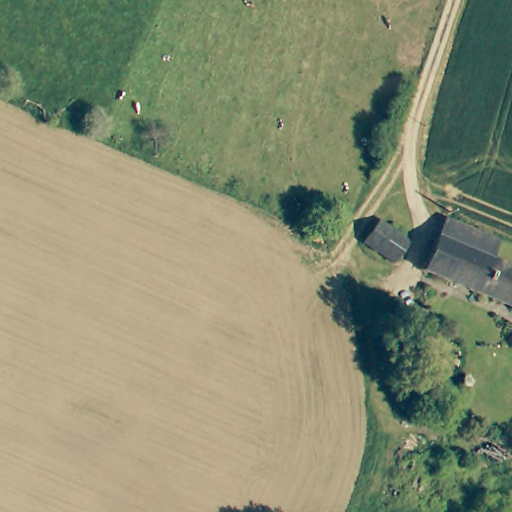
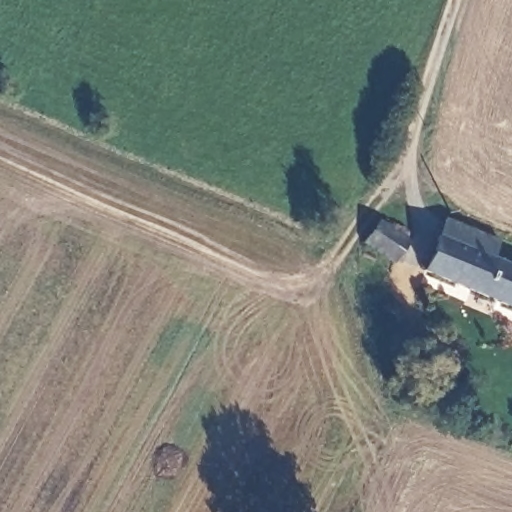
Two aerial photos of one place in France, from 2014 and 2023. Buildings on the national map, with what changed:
unchanged [(500,256),(447,232),(456,210),(510,234),(500,256)]
unchanged [(378,214),(416,238),(401,261),(367,239),(363,237),(378,214)]
unchanged [(447,232),(500,256),(512,262),(512,301),(432,264),(447,232)]

